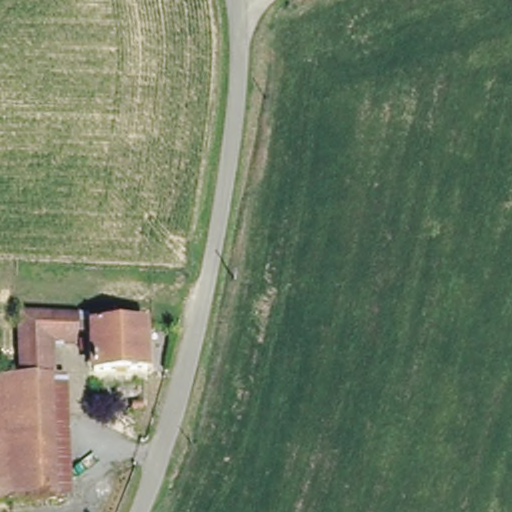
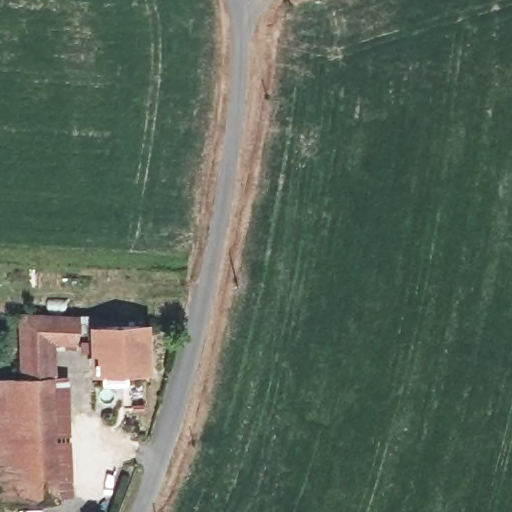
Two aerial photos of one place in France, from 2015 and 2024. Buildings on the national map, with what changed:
unchanged [(23,369),(26,307),(111,311),(111,327),(98,326),(97,337),(59,337),(55,370),(23,369)]
unchanged [(154,327),(153,372),(97,370),(97,337),(98,326),(111,327),(154,327)]
unchanged [(55,370),(51,497),(0,494),(0,368),(23,369),(55,370)]

